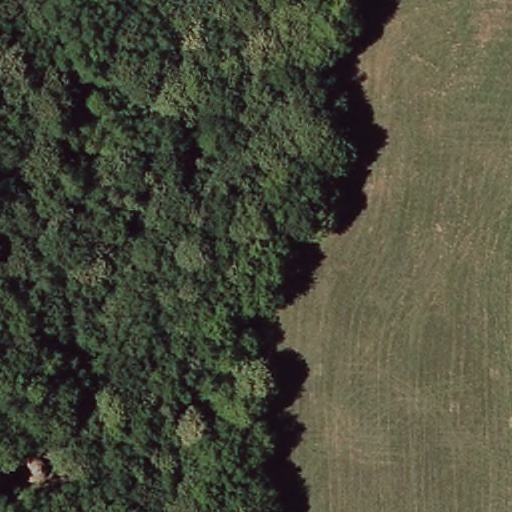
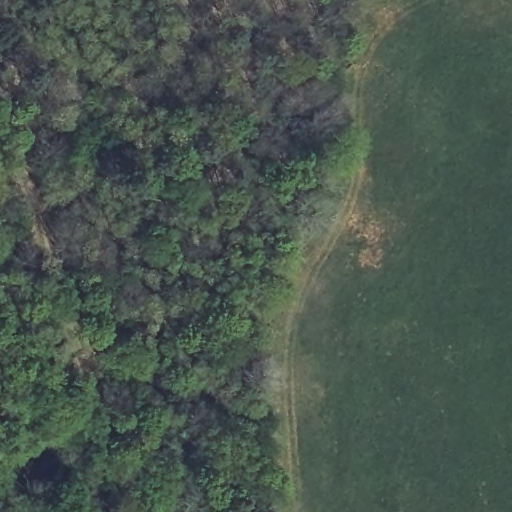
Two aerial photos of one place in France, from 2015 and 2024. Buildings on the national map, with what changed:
unchanged [(35,456),(44,463),(45,476),(37,484),(27,486),(19,484),(13,473),(16,462),(26,456),(35,456)]

